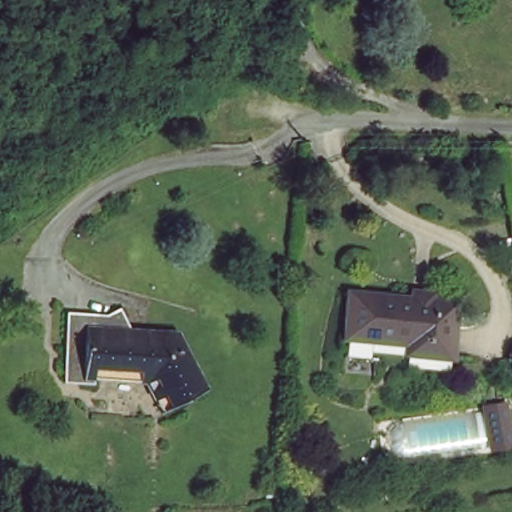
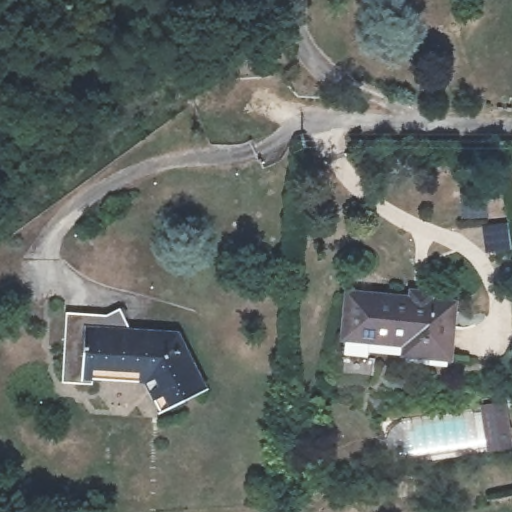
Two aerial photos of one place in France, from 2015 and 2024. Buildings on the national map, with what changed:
unchanged [(423,346),(388,342),(364,339),(368,298),(392,300),(471,308),(466,361),(443,359),(423,357),(423,346)]
unchanged [(195,403),(160,421),(140,380),(93,376),(91,392),(61,390),(65,320),(106,323),(117,316),(129,339),(176,341),(184,357),(204,397),(195,403)]
unchanged [(501,410),(507,453),(487,455),(481,413),(501,410)]

